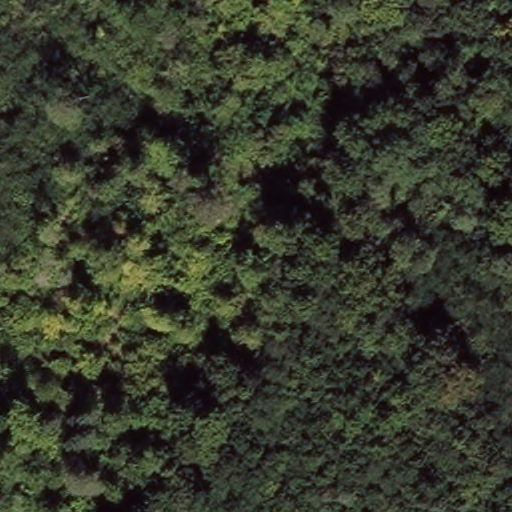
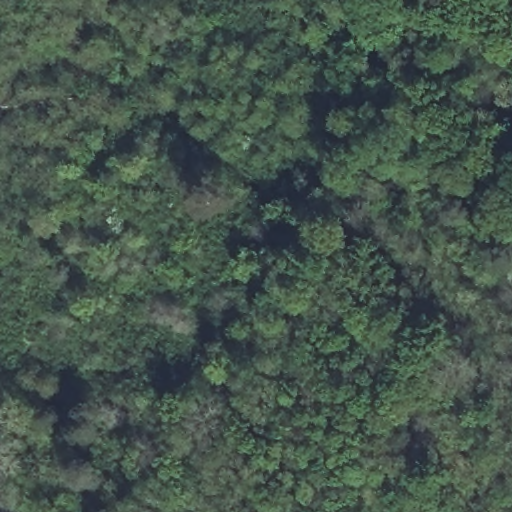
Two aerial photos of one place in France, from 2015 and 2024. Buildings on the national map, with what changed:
[]

